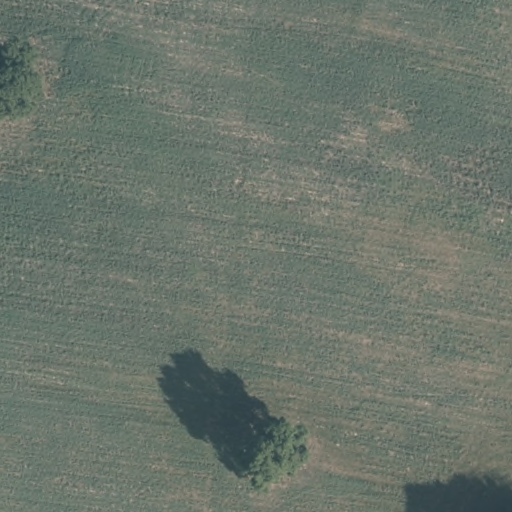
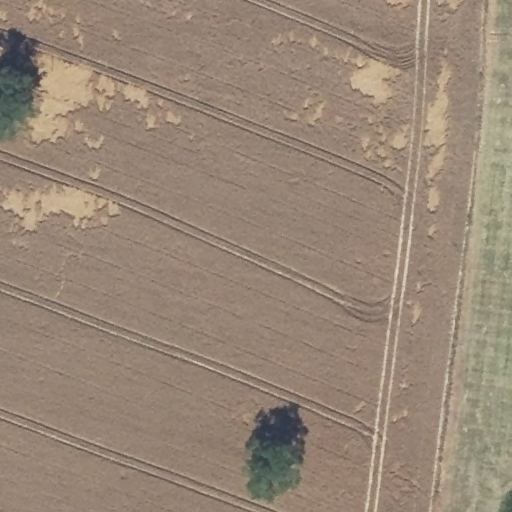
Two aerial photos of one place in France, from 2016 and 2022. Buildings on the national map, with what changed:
[]

